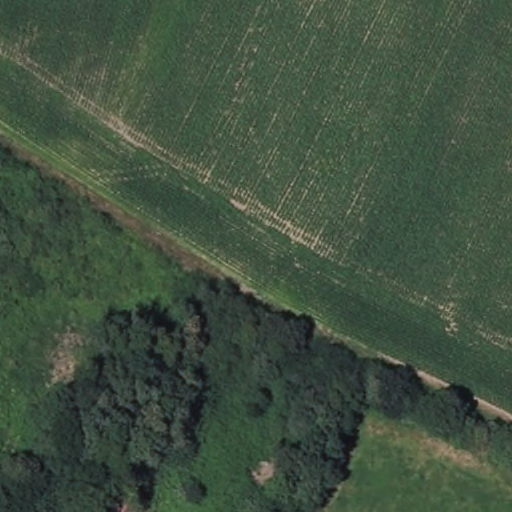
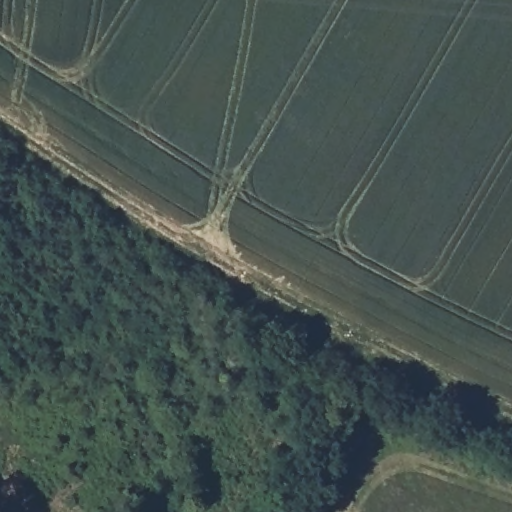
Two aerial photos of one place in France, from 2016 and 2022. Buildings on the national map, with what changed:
unchanged [(138,512),(114,512),(125,490),(144,499),(138,512)]

